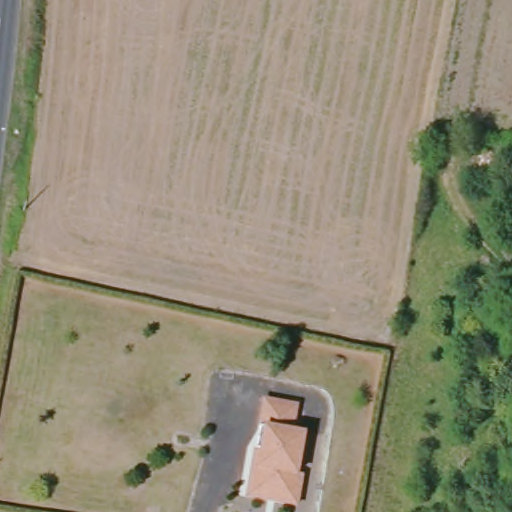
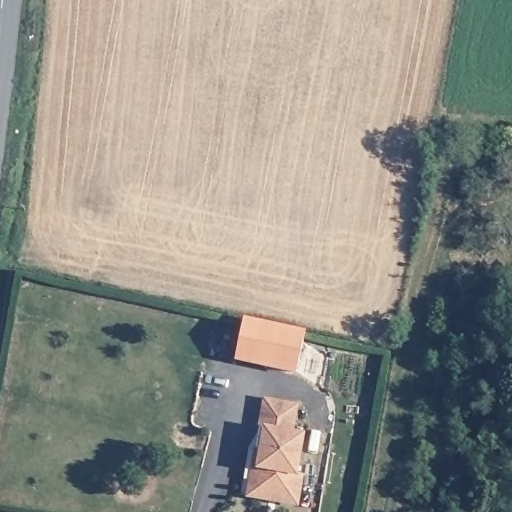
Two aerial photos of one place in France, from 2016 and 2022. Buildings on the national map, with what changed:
new [(296,369),(235,357),(243,317),(305,330),(296,369)]
unchanged [(295,506),(244,501),(245,486),(249,450),(258,451),(260,431),(256,430),(260,401),(292,405),(288,433),(296,435),(292,476),(298,477),(295,506)]

